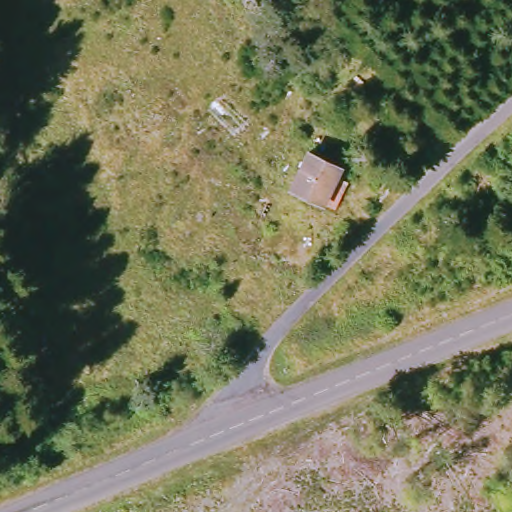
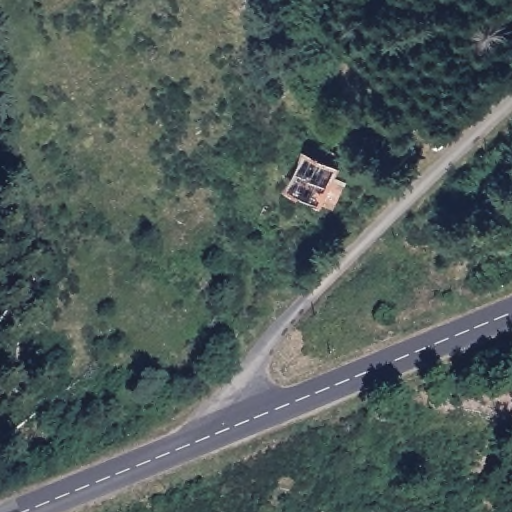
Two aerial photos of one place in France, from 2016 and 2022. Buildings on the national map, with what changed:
unchanged [(378,150),(384,136),(407,147),(400,160),(378,150)]
unchanged [(297,155),(309,162),(313,153),(325,159),(321,168),(327,171),(320,184),(332,191),(322,212),(311,204),(306,205),(279,190),(297,155)]

